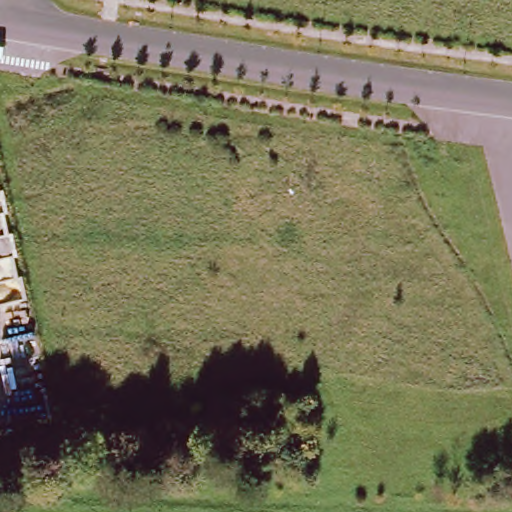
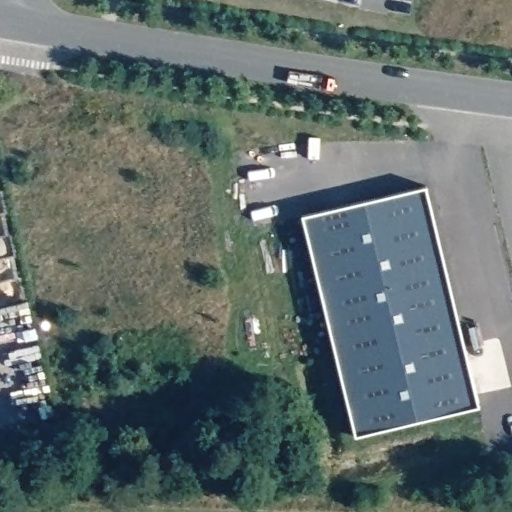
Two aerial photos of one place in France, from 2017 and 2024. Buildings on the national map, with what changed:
new [(320,7),(280,0),(321,0),(320,7)]
new [(421,194),(477,409),(352,439),(298,221),(421,194)]

